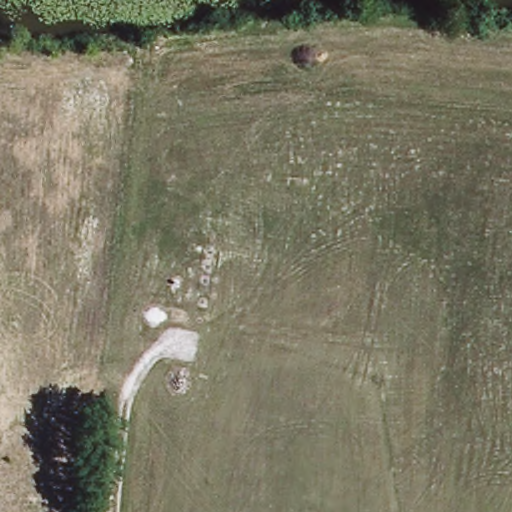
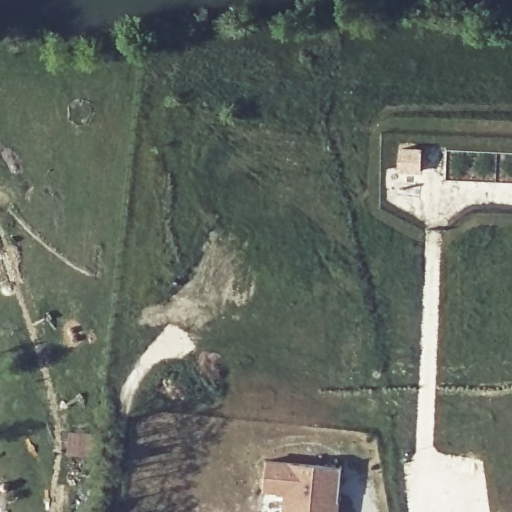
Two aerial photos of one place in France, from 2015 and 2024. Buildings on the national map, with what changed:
new [(270,459),(344,466),(340,512),(293,512),(287,511),(289,490),(268,488),(270,459)]

